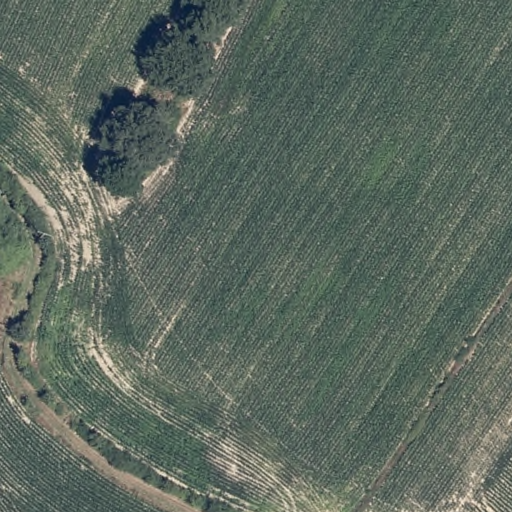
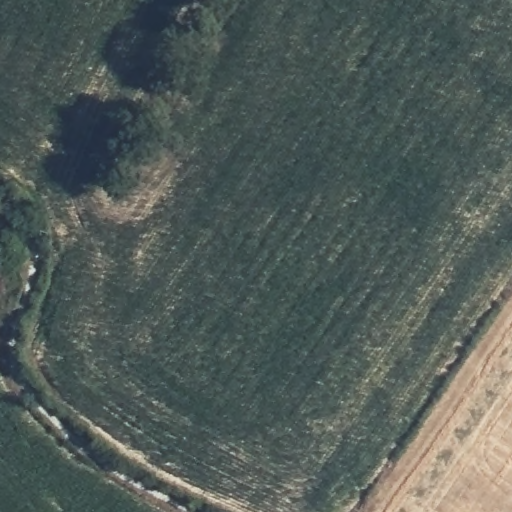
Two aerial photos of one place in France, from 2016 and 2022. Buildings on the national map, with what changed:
[]

